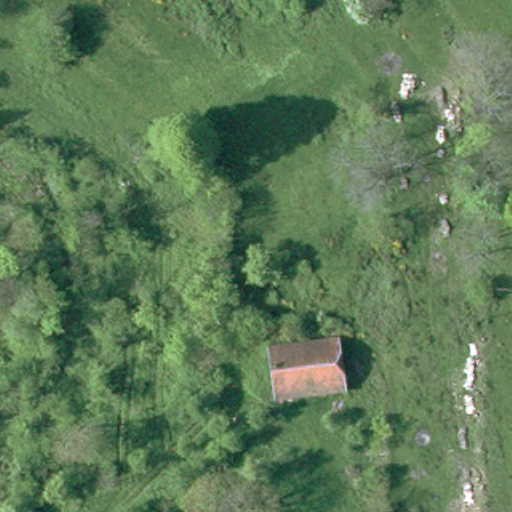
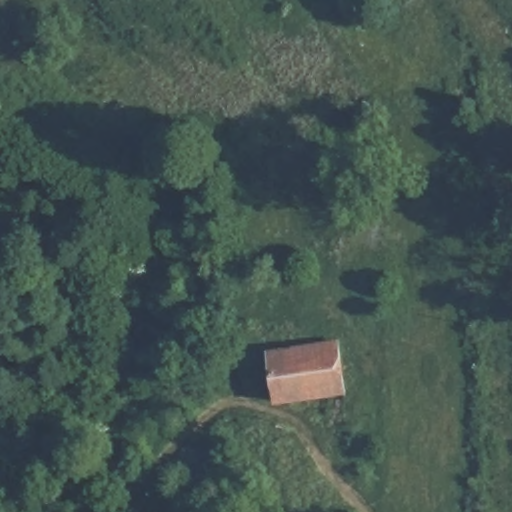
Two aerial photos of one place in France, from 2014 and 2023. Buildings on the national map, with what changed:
unchanged [(341,351),(348,399),(275,411),(269,360),(341,351)]

